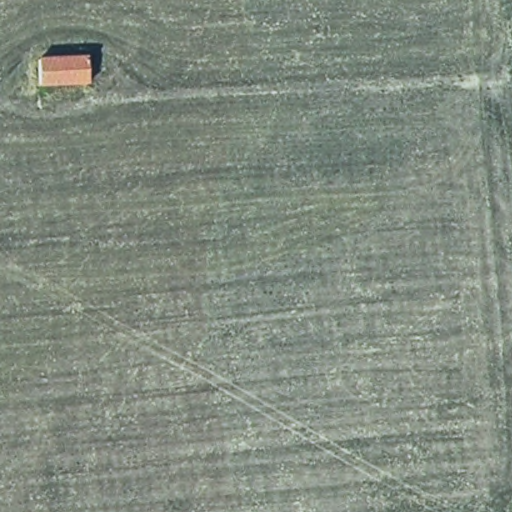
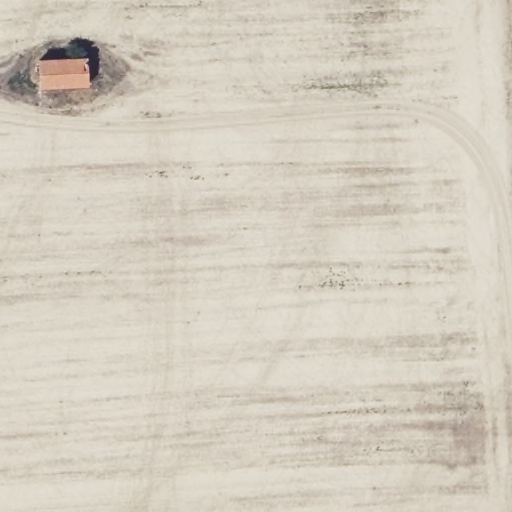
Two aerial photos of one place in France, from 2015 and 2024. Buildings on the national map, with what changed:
unchanged [(88,85),(39,88),(37,58),(86,55),(88,85)]

